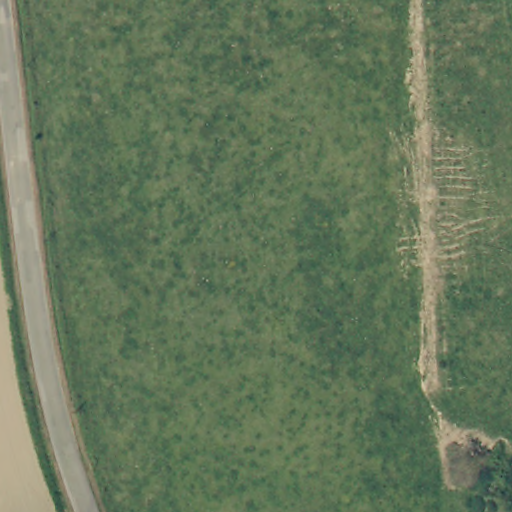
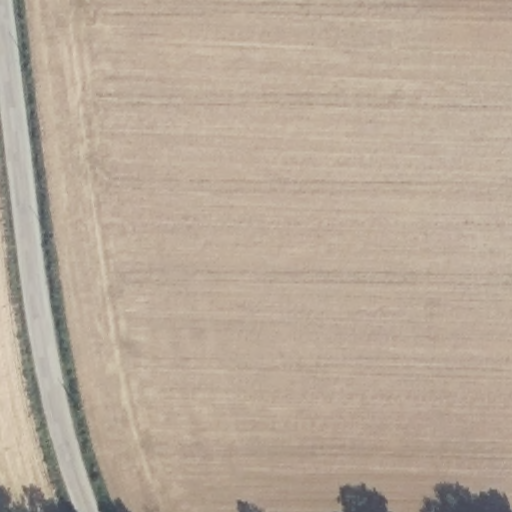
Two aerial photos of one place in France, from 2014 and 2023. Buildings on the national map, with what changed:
[]

